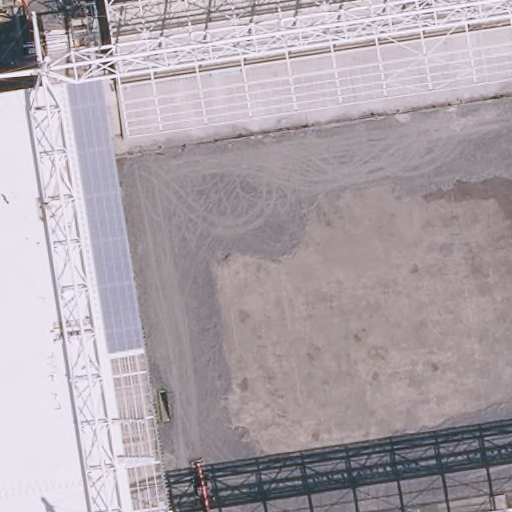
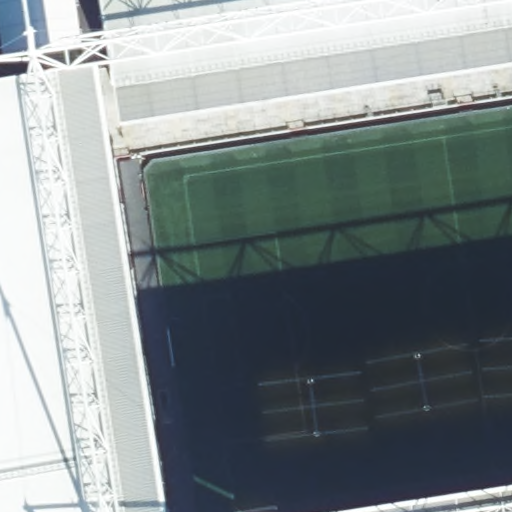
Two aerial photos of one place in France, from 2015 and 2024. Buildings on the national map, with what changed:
new [(2,61),(0,45),(0,0),(76,0),(83,50),(2,61)]
unchanged [(512,0),(512,89),(120,149),(102,25),(98,0),(512,0)]
unchanged [(75,101),(83,154),(111,150),(167,512),(0,512),(0,113),(75,101)]

